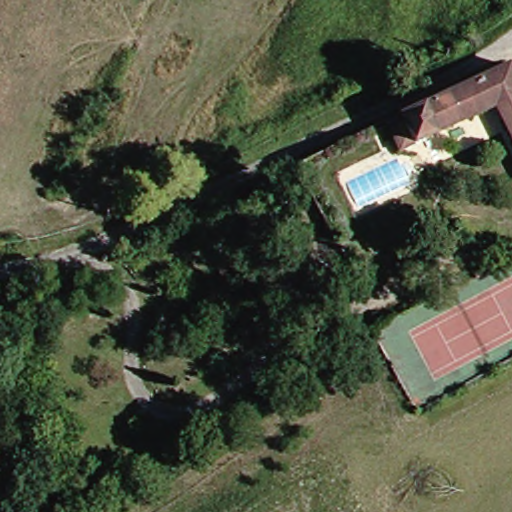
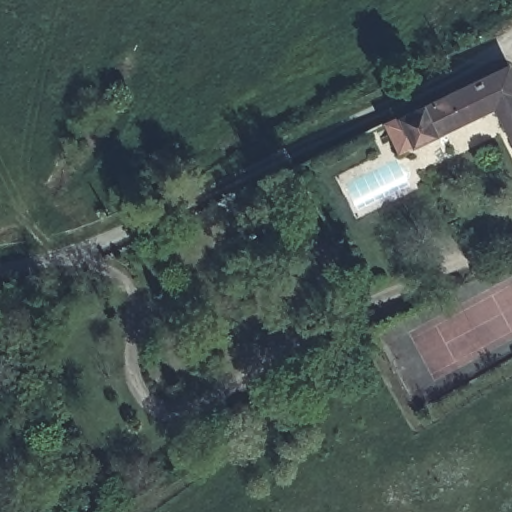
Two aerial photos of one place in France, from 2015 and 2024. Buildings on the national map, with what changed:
unchanged [(406,151),(392,123),(512,65),(512,125),(502,105),(406,151)]
unchanged [(479,272),(475,265),(485,260),(489,267),(479,272)]

